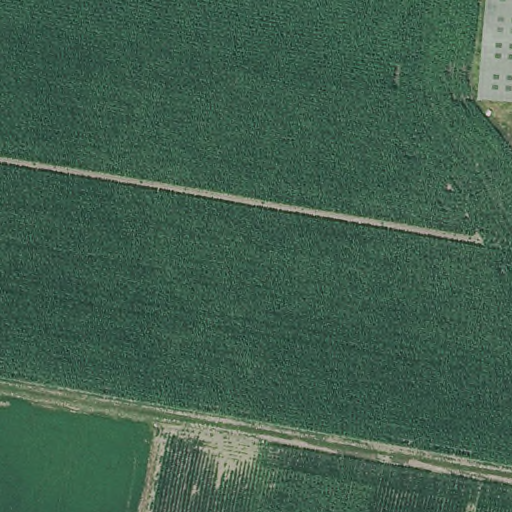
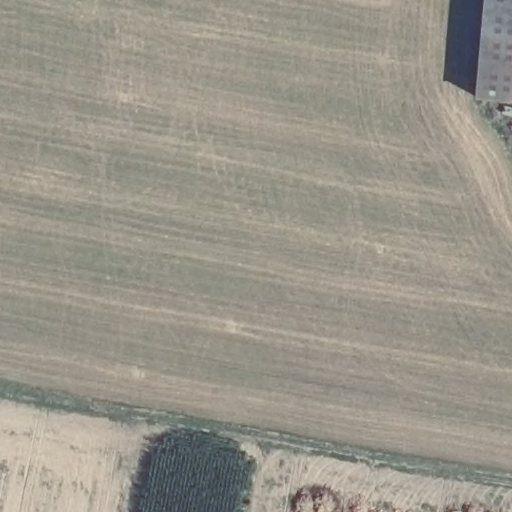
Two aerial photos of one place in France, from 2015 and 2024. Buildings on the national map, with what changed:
unchanged [(482,36),(485,0),(512,0),(512,38),(482,36)]
unchanged [(478,98),(482,36),(512,38),(512,101),(478,98)]

